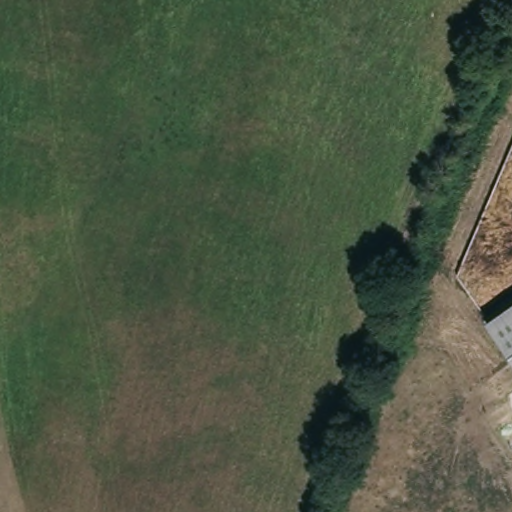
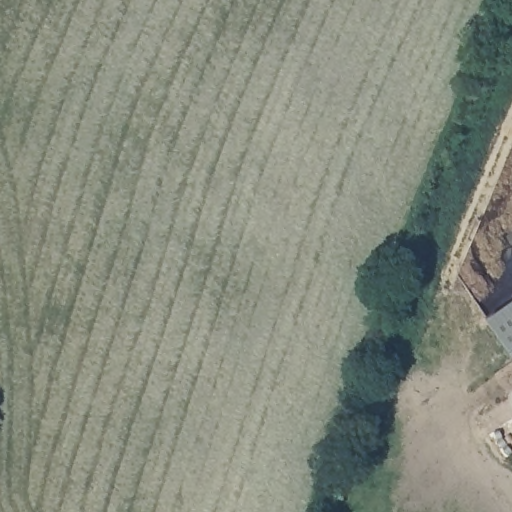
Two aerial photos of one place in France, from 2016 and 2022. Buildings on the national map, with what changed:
unchanged [(488,322),(512,305),(512,358),(488,322)]

